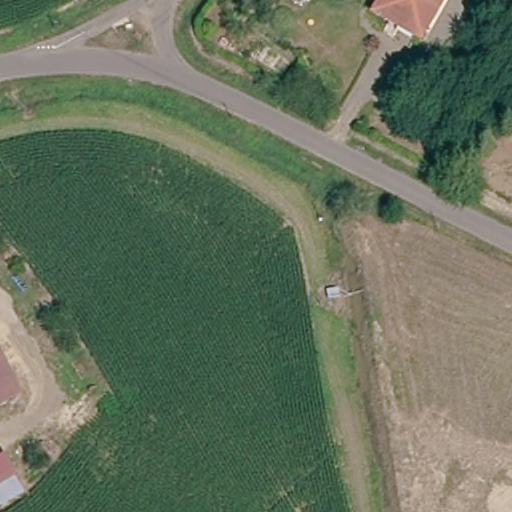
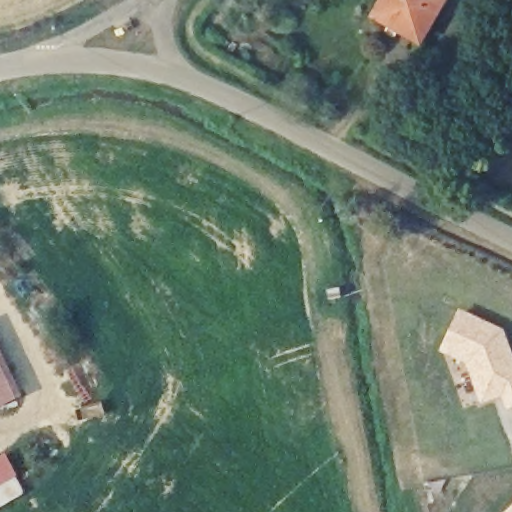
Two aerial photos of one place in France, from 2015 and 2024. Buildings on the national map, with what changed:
unchanged [(376,18),(386,0),(443,0),(420,40),(376,18)]
new [(504,328),(512,351),(512,409),(506,411),(500,397),(480,404),(464,362),(438,351),(458,308),(504,328)]
unchanged [(26,398),(2,410),(0,407),(0,346),(26,398)]
unchanged [(5,457),(26,496),(0,511),(0,460),(5,457)]
new [(512,512),(508,512),(512,508),(512,512)]

